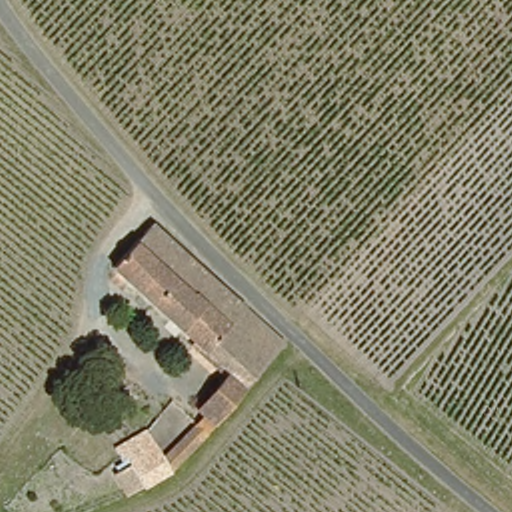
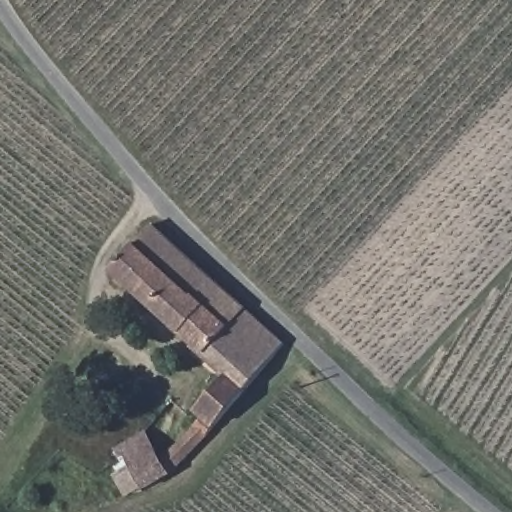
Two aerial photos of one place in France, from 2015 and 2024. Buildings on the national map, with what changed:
unchanged [(198,427),(204,419),(199,411),(229,377),(113,269),(152,228),(285,346),(211,435),(198,427)]
unchanged [(211,435),(167,479),(154,485),(128,496),(119,478),(134,471),(128,459),(122,462),(117,451),(146,438),(160,467),(198,427),(211,435)]

